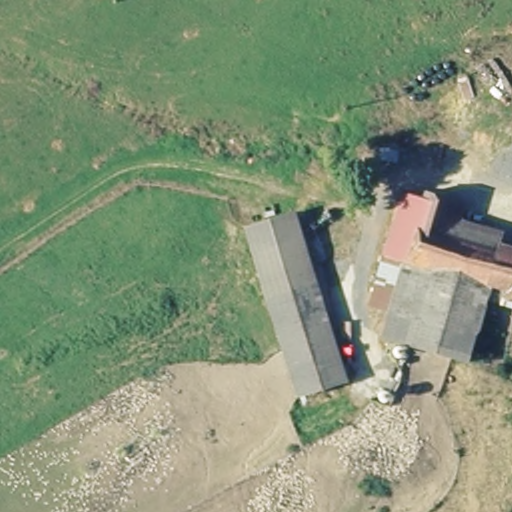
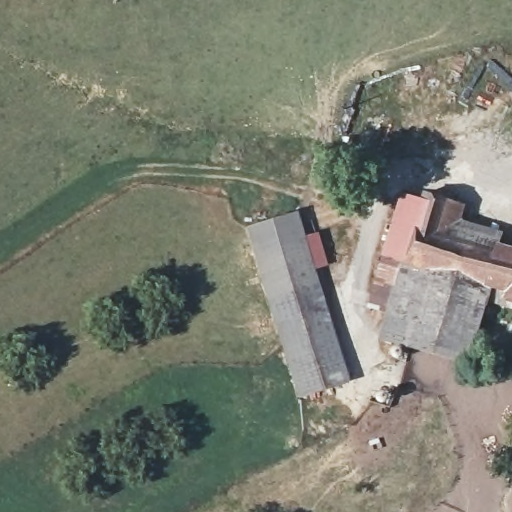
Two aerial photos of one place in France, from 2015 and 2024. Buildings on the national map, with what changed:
unchanged [(426,194),(449,202),(465,209),(463,221),(468,222),(465,237),(512,249),(512,300),(499,296),(383,257),(384,252),(402,196),(423,205),(426,194)]
unchanged [(301,214),(351,390),(297,405),(244,230),(301,214)]
unchanged [(499,296),(496,305),(480,300),(461,360),(382,341),(388,316),(371,310),(383,257),(499,296)]

